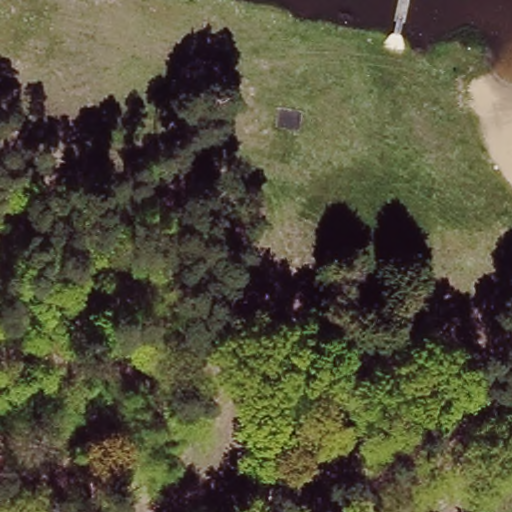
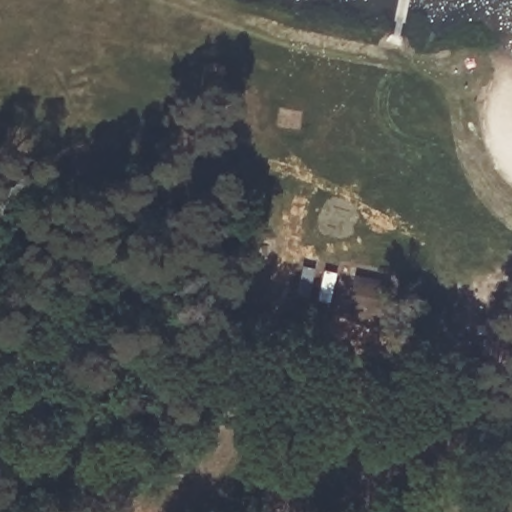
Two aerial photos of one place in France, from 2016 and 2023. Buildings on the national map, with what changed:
unchanged [(359,279),(361,249),(399,251),(397,281),(359,279)]

